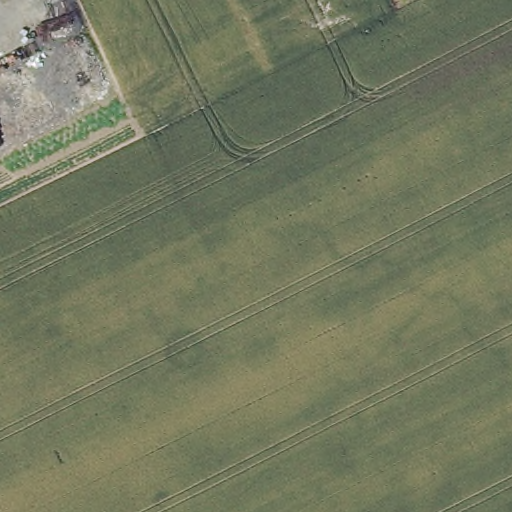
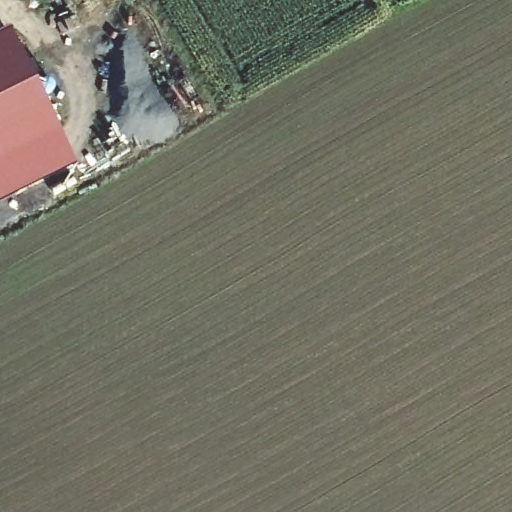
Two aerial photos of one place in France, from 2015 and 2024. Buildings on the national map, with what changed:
new [(8,32),(72,162),(0,199),(0,36),(8,32)]

